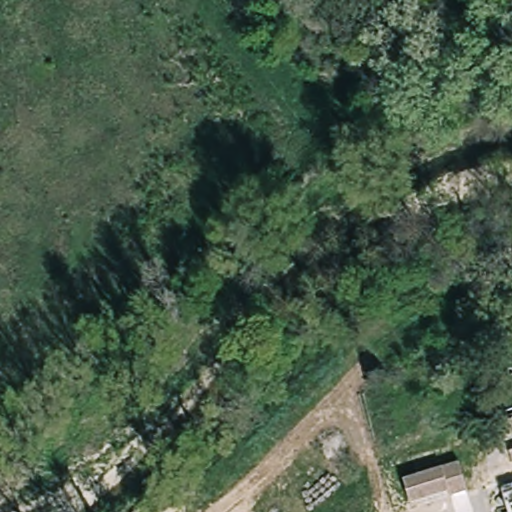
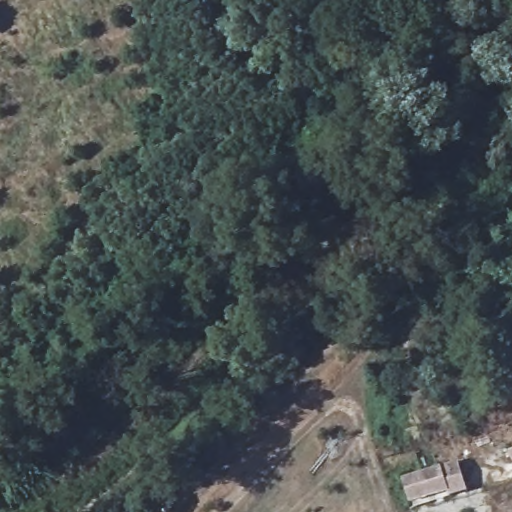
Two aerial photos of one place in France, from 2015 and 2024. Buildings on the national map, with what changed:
unchanged [(401,479),(459,463),(467,490),(406,508),(401,479)]

